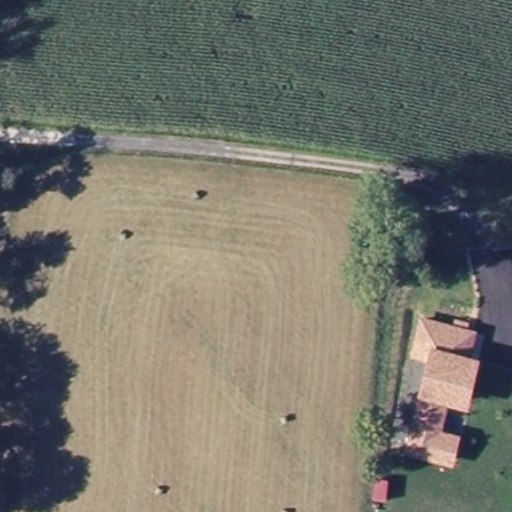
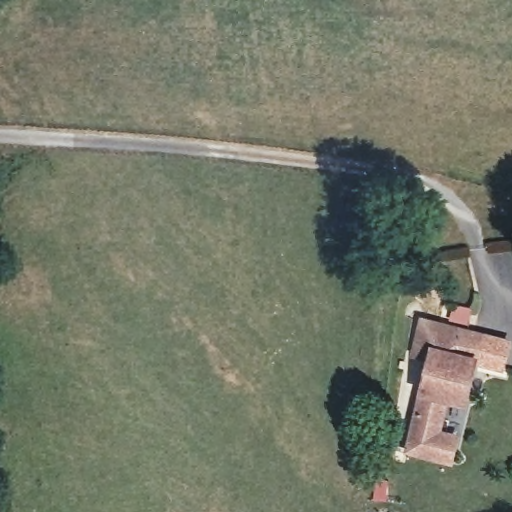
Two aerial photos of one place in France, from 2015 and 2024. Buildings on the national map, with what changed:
unchanged [(420,392),(427,361),(410,357),(418,317),(476,331),(470,356),(480,358),(468,408),(450,403),(444,432),(461,435),(454,466),(404,455),(420,392)]

